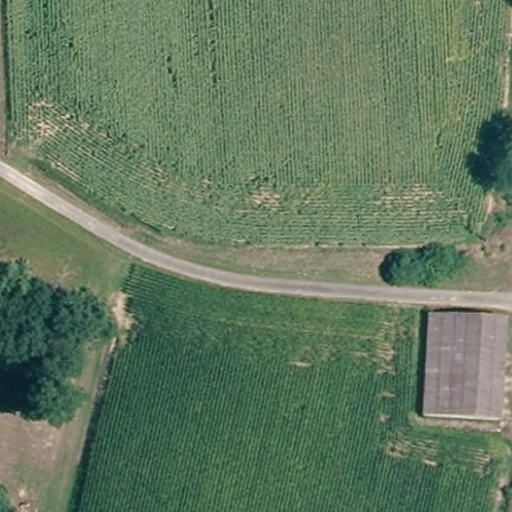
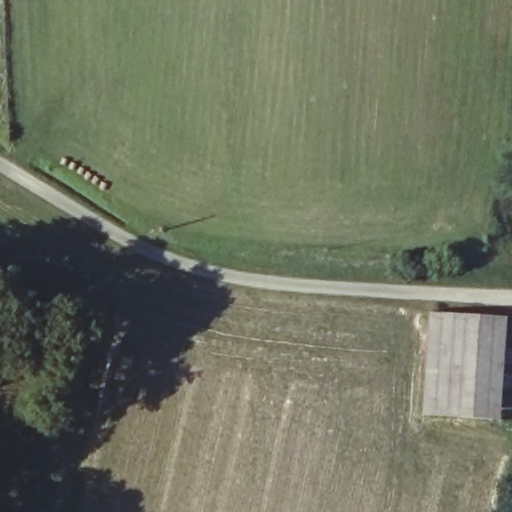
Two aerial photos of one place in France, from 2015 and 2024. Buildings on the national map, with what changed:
unchanged [(423,412),(435,308),(509,315),(497,422),(423,412)]

